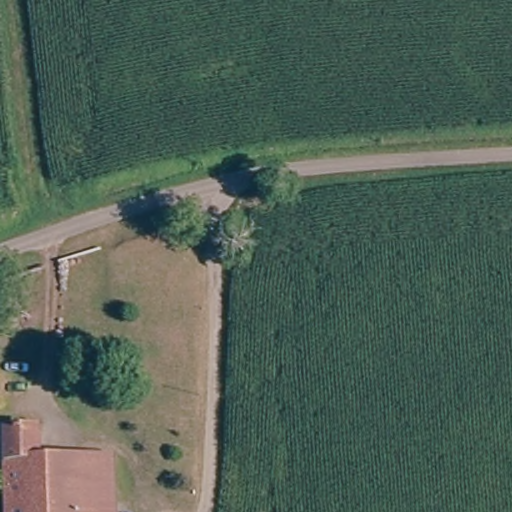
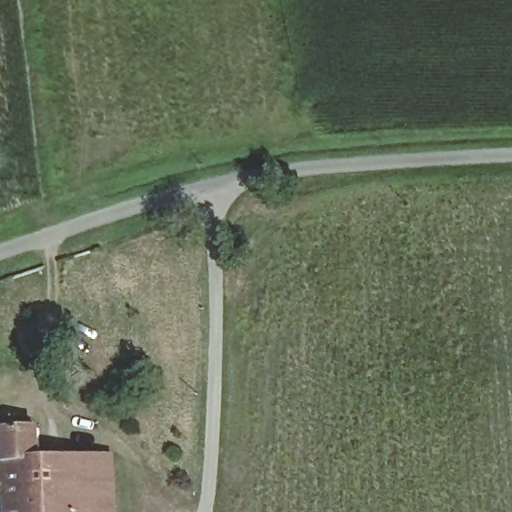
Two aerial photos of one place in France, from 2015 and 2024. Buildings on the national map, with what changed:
unchanged [(4,433),(40,432),(41,459),(112,456),(115,512),(8,512),(4,433)]

